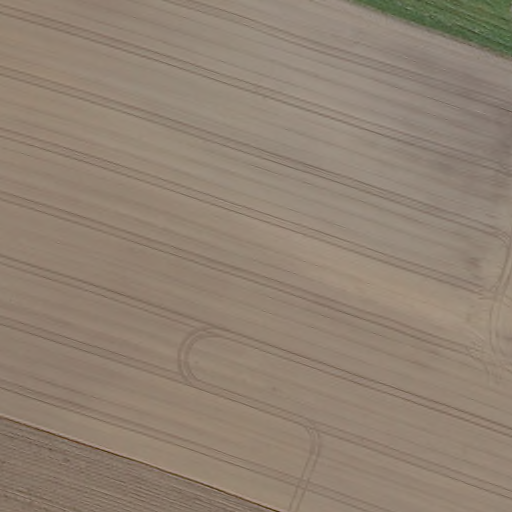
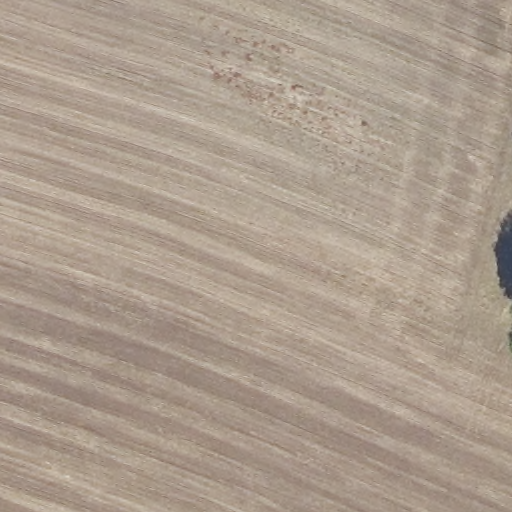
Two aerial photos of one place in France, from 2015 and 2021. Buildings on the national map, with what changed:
[]

